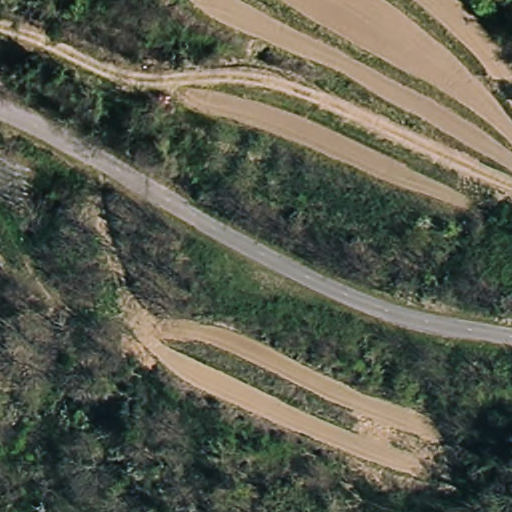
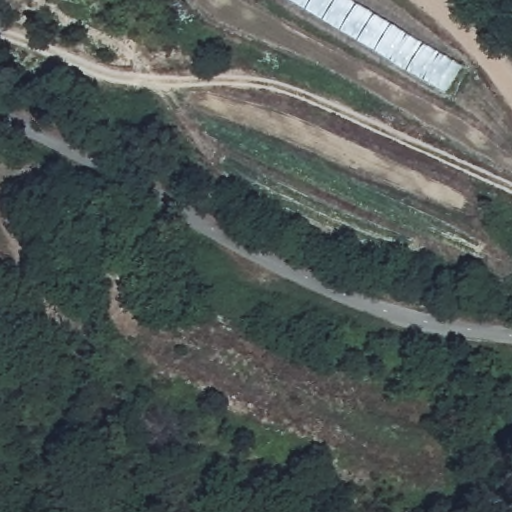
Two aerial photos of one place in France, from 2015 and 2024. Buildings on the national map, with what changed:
new [(292,0),(350,0),(463,66),(446,94),(292,0)]

